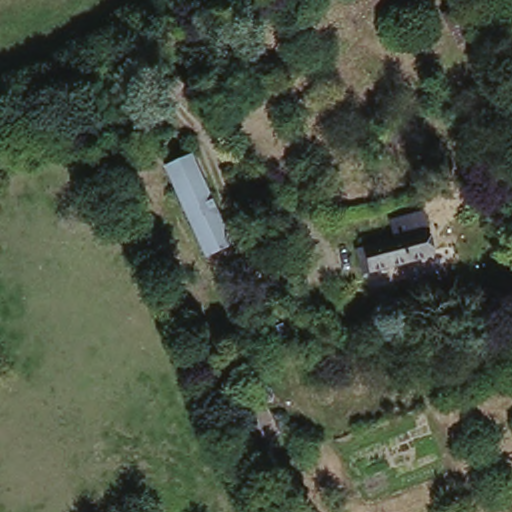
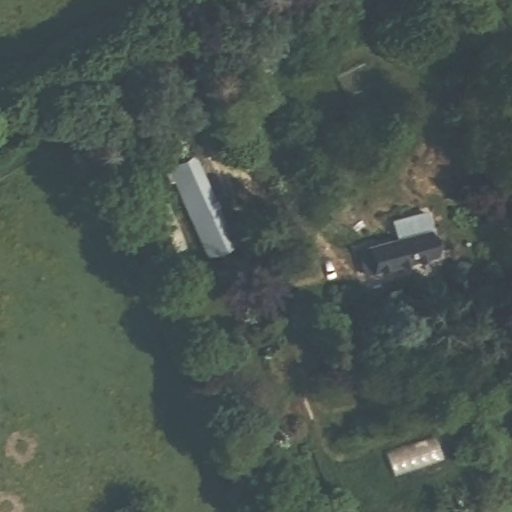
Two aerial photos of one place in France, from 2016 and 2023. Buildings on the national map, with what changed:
unchanged [(460,9),(475,38),(458,46),(443,18),(460,9)]
unchanged [(206,252),(175,187),(162,163),(190,150),(199,174),(231,239),(206,252)]
unchanged [(422,214),(434,257),(368,275),(362,252),(400,243),(392,222),(422,214)]
unchanged [(283,435),(251,447),(230,407),(262,392),(283,435)]

